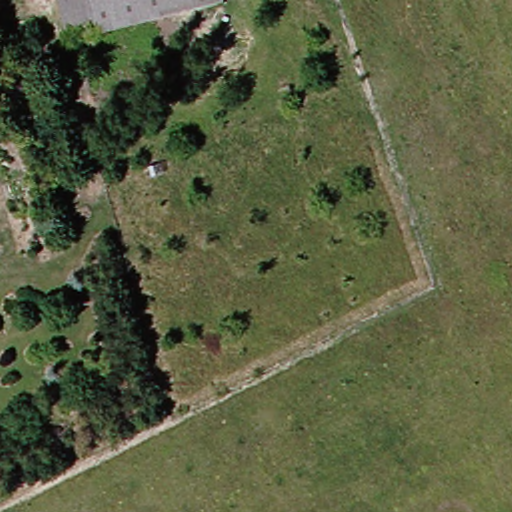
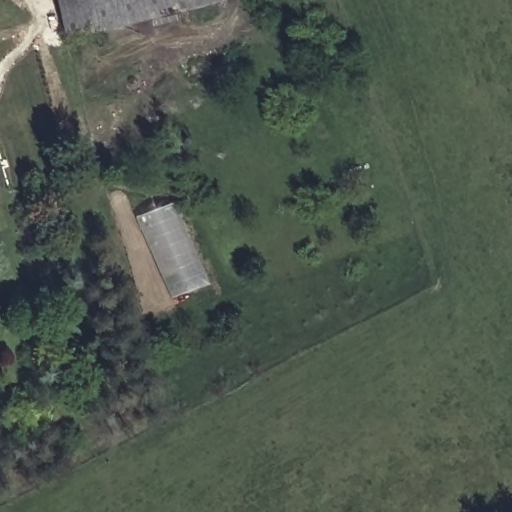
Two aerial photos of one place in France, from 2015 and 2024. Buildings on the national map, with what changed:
unchanged [(66,29),(60,0),(90,0),(94,27),(66,29)]
unchanged [(201,9),(94,27),(90,0),(199,0),(201,9)]
unchanged [(230,3),(201,9),(199,0),(229,0),(230,3)]
new [(170,298),(137,215),(176,201),(208,282),(170,298)]

